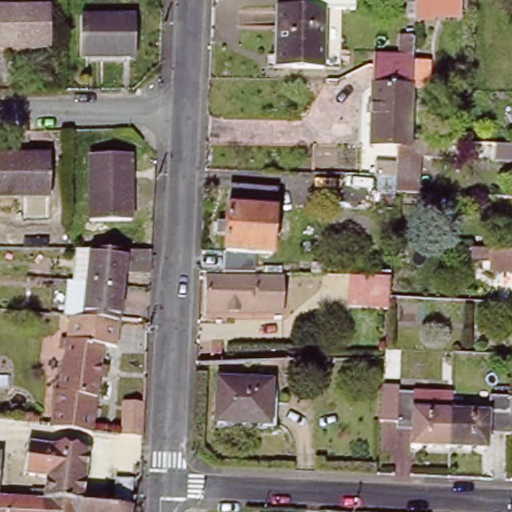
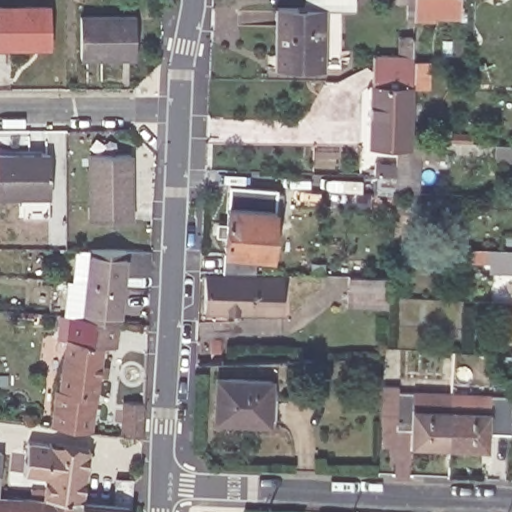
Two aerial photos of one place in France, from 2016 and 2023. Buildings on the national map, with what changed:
unchanged [(276,55),(278,7),(305,7),(306,0),(358,0),(358,9),(354,8),(342,8),(340,69),(293,68),(276,68),(276,55)]
unchanged [(450,18),(428,17),(428,11),(416,11),(417,0),(491,0),(490,13),(450,12),(450,18)]
unchanged [(0,48),(0,5),(46,3),(46,46),(0,48)]
unchanged [(132,55),(81,54),(80,15),(135,15),(132,55)]
unchanged [(406,91),(365,90),(366,71),(366,58),(407,60),(406,91)]
unchanged [(406,91),(405,144),(404,150),(392,150),(363,150),(365,90),(406,91)]
unchanged [(130,216),(88,218),(85,153),(129,153),(130,216)]
unchanged [(395,157),(413,158),(411,197),(392,196),(395,157)]
unchanged [(0,199),(0,159),(46,159),(46,199),(0,199)]
unchanged [(223,235),(215,234),(215,221),(224,221),(226,184),(271,186),(270,210),(278,211),(277,226),(272,225),(271,258),(255,257),(254,274),(221,273),(223,235)]
unchanged [(95,281),(98,249),(135,250),(157,250),(160,250),(158,275),(132,272),(126,320),(123,319),(76,314),(78,279),(95,281)]
unchanged [(290,280),(289,316),(206,313),(207,277),(290,280)]
unchanged [(387,295),(386,311),(341,307),(342,278),(388,280),(387,295)]
unchanged [(123,319),(120,348),(109,347),(101,402),(98,416),(96,431),(57,426),(61,393),(66,394),(76,314),(123,319)]
unchanged [(221,322),(220,354),(212,354),(213,322),(221,322)]
unchanged [(265,375),(262,426),(207,423),(210,372),(265,375)]
unchanged [(447,449),(411,447),(412,424),(381,422),(383,388),(398,389),(398,393),(450,396),(450,407),(447,449)]
unchanged [(509,428),(487,427),(486,450),(447,449),(450,407),(488,409),(488,397),(510,398),(509,428)]
unchanged [(509,428),(510,398),(512,398),(512,429),(509,428)]
unchanged [(121,445),(125,400),(148,401),(146,438),(145,448),(121,445)]
unchanged [(83,504),(46,501),(45,501),(47,480),(25,478),(30,443),(89,451),(84,500),(83,504)]
unchanged [(0,491),(0,454),(3,454),(0,491)]
unchanged [(135,480),(133,507),(130,507),(129,512),(46,512),(46,501),(83,504),(84,500),(114,504),(115,479),(135,480)]
unchanged [(46,501),(46,512),(0,512),(0,498),(45,501),(46,501)]

